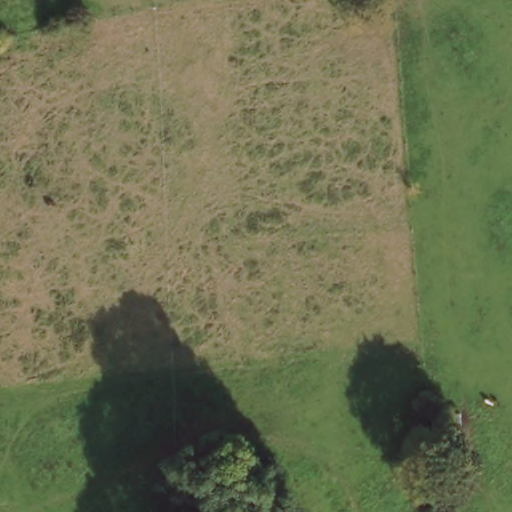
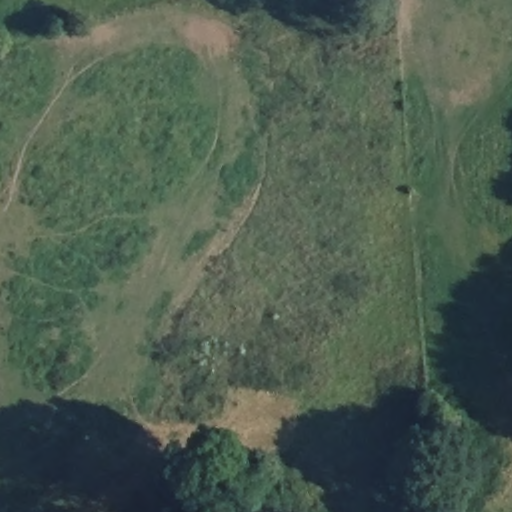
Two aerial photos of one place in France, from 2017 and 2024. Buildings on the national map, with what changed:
unchanged [(461,446),(446,446),(445,416),(461,416),(461,446)]

